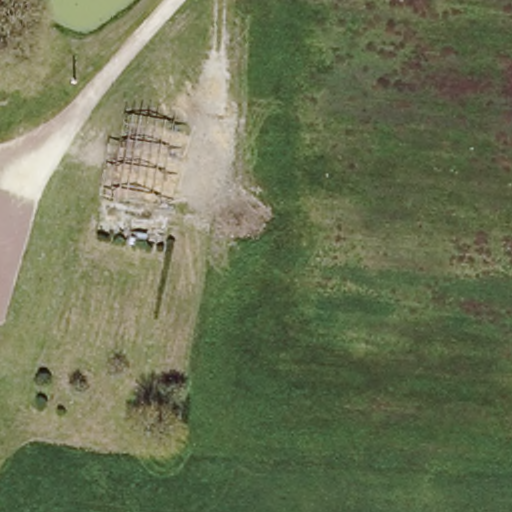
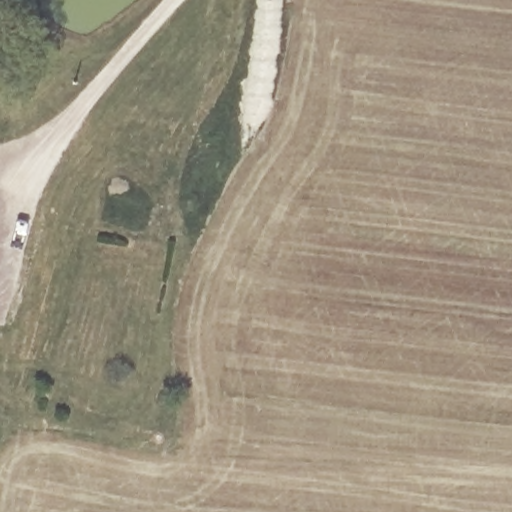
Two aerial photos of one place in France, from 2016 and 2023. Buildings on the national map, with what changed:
unchanged [(0,66),(0,61),(1,61),(0,66)]

